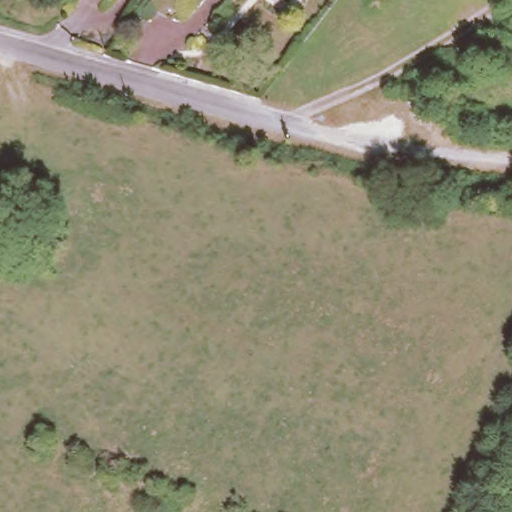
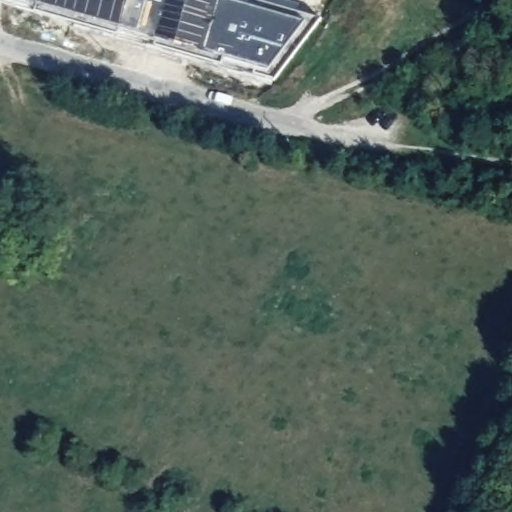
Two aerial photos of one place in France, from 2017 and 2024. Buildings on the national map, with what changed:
new [(321,18),(273,80),(0,4),(0,0),(257,0),(321,18)]

